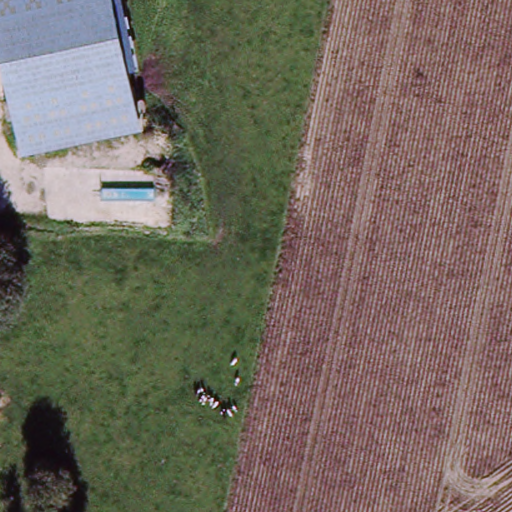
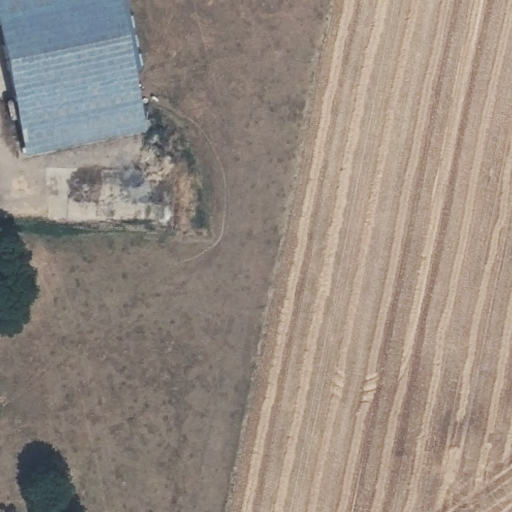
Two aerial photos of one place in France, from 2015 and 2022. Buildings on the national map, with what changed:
unchanged [(23,154),(0,44),(0,0),(115,0),(142,128),(23,154)]

